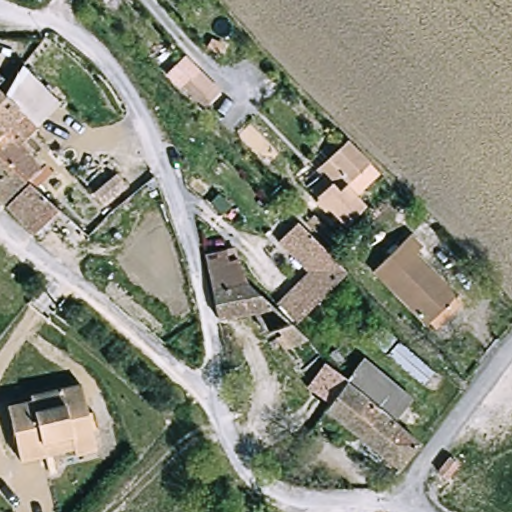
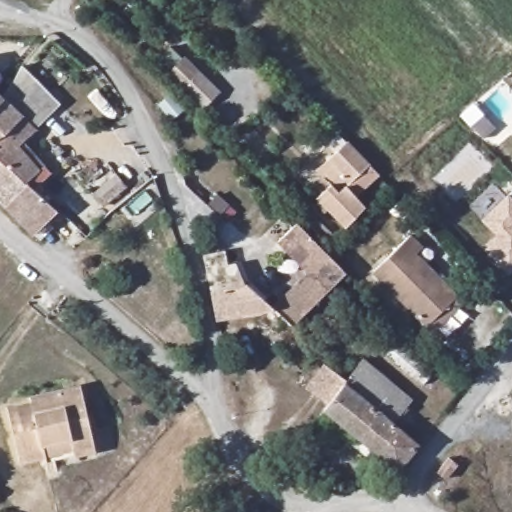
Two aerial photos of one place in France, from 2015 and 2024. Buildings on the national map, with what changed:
unchanged [(167,78),(176,69),(183,76),(191,67),(213,88),(196,105),(167,78)]
unchanged [(19,68),(53,106),(30,131),(13,111),(19,68)]
unchanged [(12,114),(0,126),(0,98),(13,111),(12,114)]
unchanged [(0,126),(12,114),(13,111),(30,131),(14,149),(30,165),(40,177),(34,183),(40,189),(39,197),(53,211),(28,233),(0,203),(0,126)]
unchanged [(320,198),(334,185),(319,170),(350,140),(373,163),(349,187),(369,207),(352,229),(320,198)]
unchanged [(93,193),(118,172),(129,184),(104,204),(93,193)]
new [(508,277),(482,249),(496,235),(482,220),(509,194),(512,191),(512,273),(508,277)]
unchanged [(293,317),(274,298),(304,267),(274,238),(293,218),(323,248),(342,268),(293,317)]
unchanged [(414,253),(464,301),(433,333),(370,271),(409,232),(422,244),(414,253)]
unchanged [(249,281),(306,338),(295,349),(281,333),(269,338),(258,308),(216,318),(204,255),(229,251),(248,270),(249,281)]
unchanged [(422,383),(384,355),(393,340),(434,371),(422,383)]
unchanged [(370,356),(416,398),(398,417),(351,377),(370,356)]
unchanged [(398,469),(326,409),(328,406),(305,389),(324,364),(346,382),(418,444),(398,469)]
unchanged [(79,389),(93,447),(21,463),(8,410),(29,404),(28,400),(79,389)]
unchanged [(447,474),(439,469),(450,454),(458,461),(447,474)]

